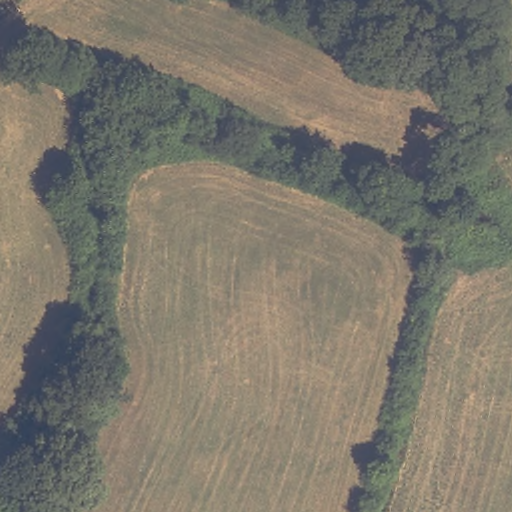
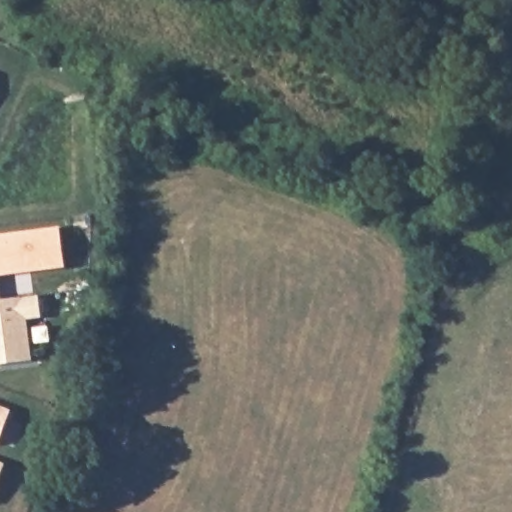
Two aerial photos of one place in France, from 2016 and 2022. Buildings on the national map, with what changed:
new [(66,268),(0,277),(0,234),(60,227),(66,268)]
new [(38,317),(23,318),(28,360),(0,363),(0,300),(35,296),(38,317)]
new [(0,445),(0,406),(12,411),(0,445)]
new [(0,479),(0,462),(5,464),(0,479)]

